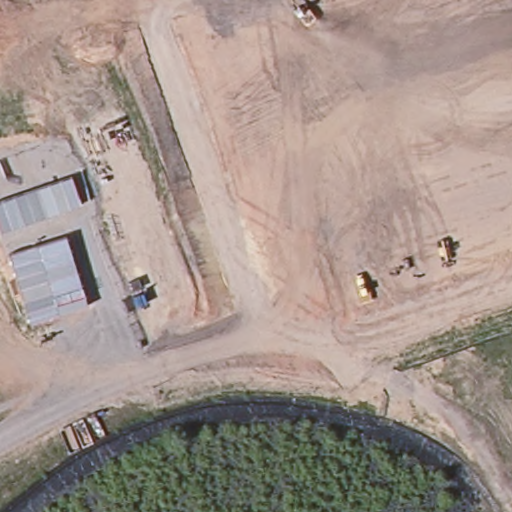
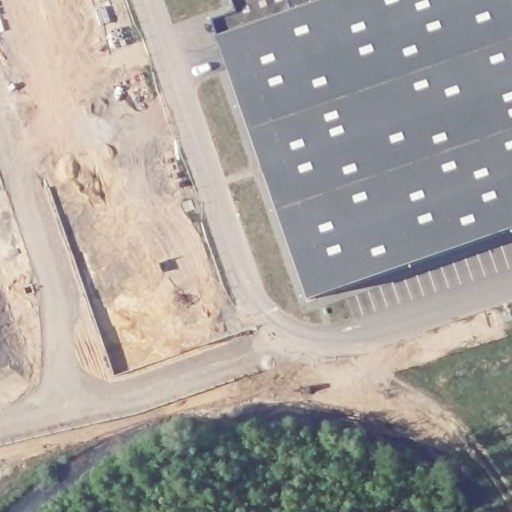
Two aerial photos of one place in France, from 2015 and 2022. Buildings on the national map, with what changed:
new [(210,21),(237,12),(232,0),(512,0),(512,230),(307,300),(217,38),(210,21)]

